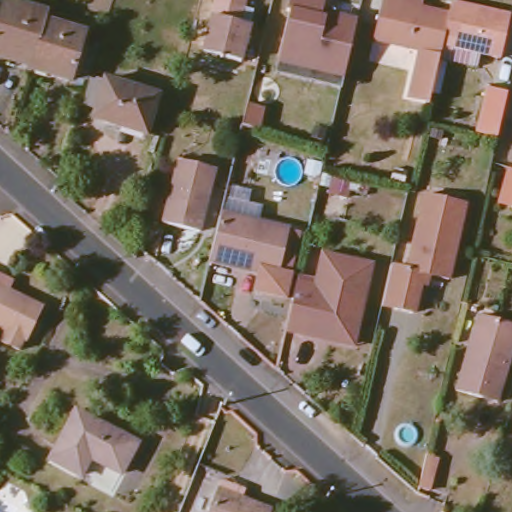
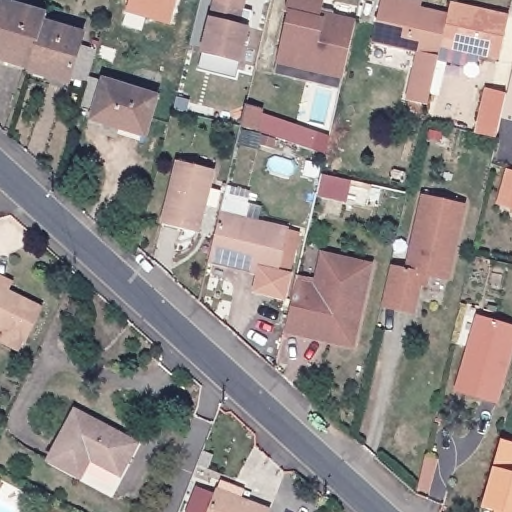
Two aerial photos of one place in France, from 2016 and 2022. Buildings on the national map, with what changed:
new [(171,24),(128,9),(131,0),(179,0),(171,24)]
unchanged [(240,26),(251,28),(241,67),(205,59),(217,0),(245,0),(240,26)]
unchanged [(347,68),(316,61),(314,71),(278,63),(289,13),(286,12),(289,0),(325,0),(322,13),(358,21),(347,68)]
unchanged [(440,47),(437,58),(412,53),(375,44),(384,0),(405,0),(403,7),(446,17),(440,47)]
unchanged [(46,23),(32,69),(30,75),(24,73),(25,71),(3,64),(0,62),(0,4),(0,3),(48,17),(46,23)]
unchanged [(507,17),(497,60),(440,47),(446,17),(448,4),(507,17)]
unchanged [(85,35),(81,48),(101,54),(92,82),(90,88),(70,82),(68,87),(50,81),(51,75),(32,69),(46,23),(85,35)]
unchanged [(437,58),(429,105),(403,100),(412,53),(437,58)]
unchanged [(147,140),(92,123),(95,115),(82,112),(90,88),(92,82),(105,87),(105,83),(160,100),(147,140)]
unchanged [(497,133),(476,128),(486,87),(506,91),(497,133)]
unchanged [(248,99),(266,104),(264,132),(244,127),(248,99)]
unchanged [(212,170),(197,235),(161,226),(176,161),(212,170)]
unchanged [(505,168),(512,170),(512,207),(492,203),(505,168)]
unchanged [(410,270),(425,197),(467,205),(451,281),(424,275),(421,287),(416,315),(385,308),(394,267),(410,270)]
unchanged [(291,232),(283,271),(293,273),(287,299),(257,293),(262,268),(237,262),(236,268),(212,262),(222,217),(291,232)]
unchanged [(315,302),(325,255),(374,266),(357,341),(308,330),(306,337),(287,333),(295,298),(315,302)]
unchanged [(10,295),(9,299),(22,306),(24,301),(50,313),(34,345),(31,343),(25,356),(6,347),(12,334),(0,328),(0,290),(10,295)]
unchanged [(512,335),(490,403),(453,390),(477,316),(512,328),(512,335)]
unchanged [(71,408),(134,440),(118,471),(87,457),(78,474),(45,456),(71,408)]
new [(512,512),(496,512),(483,508),(502,441),(512,444),(512,512)]
unchanged [(424,455),(442,458),(436,493),(419,487),(424,455)]
unchanged [(244,499),(272,512),(211,512),(222,481),(246,491),(244,499)]

